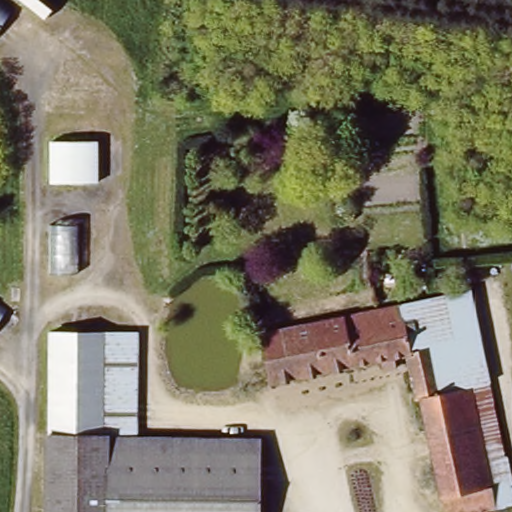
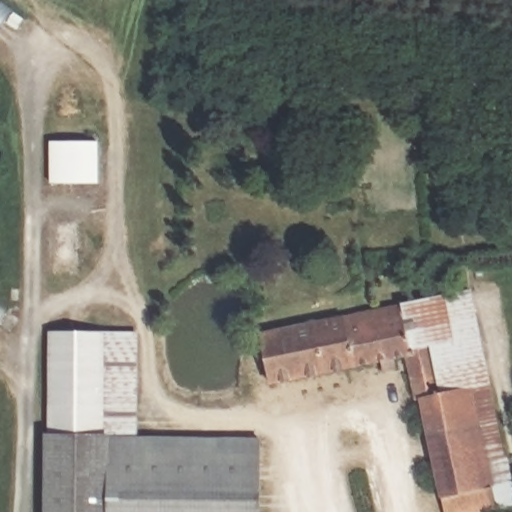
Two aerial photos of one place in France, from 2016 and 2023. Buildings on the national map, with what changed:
unchanged [(23,7),(0,39),(0,0),(14,0),(23,7)]
unchanged [(104,152),(101,189),(49,188),(50,148),(104,152)]
unchanged [(99,286),(50,286),(53,241),(98,241),(99,286)]
unchanged [(468,288),(494,397),(480,402),(448,407),(429,310),(328,329),(330,344),(289,350),(294,378),(268,384),(258,335),(468,288)]
unchanged [(0,317),(0,300),(8,306),(0,317)]
unchanged [(294,378),(289,350),(330,344),(328,329),(429,310),(448,407),(480,402),(504,509),(489,512),(451,512),(416,358),(294,378)]
unchanged [(136,332),(136,437),(258,441),(255,512),(37,512),(40,333),(136,332)]

